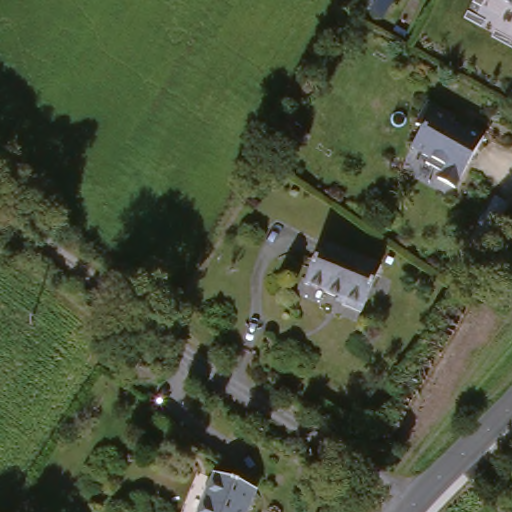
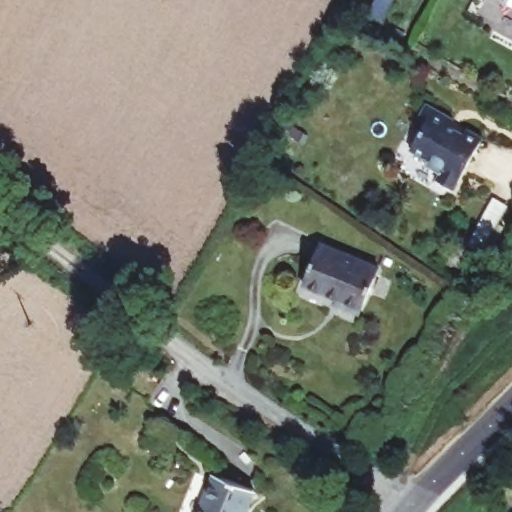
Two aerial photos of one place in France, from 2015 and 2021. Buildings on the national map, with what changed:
unchanged [(372,13),(380,0),(395,0),(385,20),(372,13)]
unchanged [(512,2),(507,0),(512,0),(512,2)]
unchanged [(437,191),(440,185),(425,176),(428,170),(409,161),(420,140),(412,137),(425,111),(453,125),(450,132),(465,140),(512,110),(512,121),(485,142),(455,200),(437,191)]
unchanged [(355,315),(335,308),(337,304),(297,289),(307,267),(315,249),(372,273),(355,315)]
unchanged [(247,496),(241,512),(197,512),(210,480),(247,496)]

